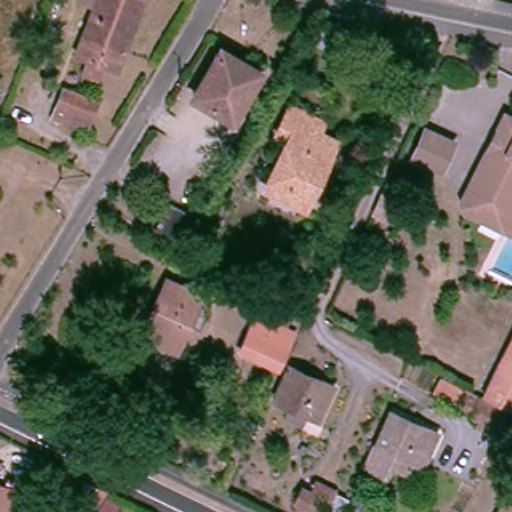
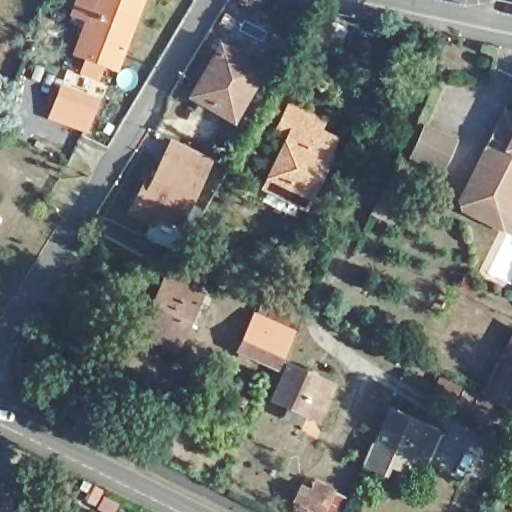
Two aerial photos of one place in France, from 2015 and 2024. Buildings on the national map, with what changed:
unchanged [(149,1),(120,70),(80,51),(100,2),(96,0),(146,0),(149,1)]
unchanged [(230,124),(190,100),(220,53),(260,76),(230,124)]
unchanged [(88,128),(67,119),(71,106),(61,102),(68,85),(100,100),(88,128)]
unchanged [(263,191),(286,147),(272,140),(281,124),(286,114),(321,130),(316,140),(332,148),(323,165),(300,209),(263,191)]
unchanged [(486,224),(468,214),(465,201),(488,151),(497,134),(505,116),(512,119),(512,222),(512,238),(486,224)]
unchanged [(442,169),(415,157),(430,126),(456,139),(442,169)]
new [(151,176),(164,150),(170,136),(209,155),(202,168),(177,221),(155,211),(151,220),(129,210),(135,195),(145,174),(151,176)]
unchanged [(175,353),(143,338),(168,283),(200,298),(175,353)]
unchanged [(276,365),(242,350),(257,315),(291,331),(276,365)]
unchanged [(486,397),(512,349),(512,410),(486,397)]
unchanged [(321,428),(270,404),(292,364),(338,387),(321,428)]
unchanged [(501,427),(475,414),(482,400),(509,414),(501,427)]
unchanged [(421,465),(407,459),(403,468),(387,460),(380,475),(363,467),(391,408),(437,430),(421,465)]
unchanged [(0,512),(0,491),(17,494),(14,512),(0,512)]
unchanged [(308,512),(315,496),(321,499),(322,495),(347,508),(346,512),(308,512)]
unchanged [(512,506),(512,512),(496,512),(505,500),(512,506)]

